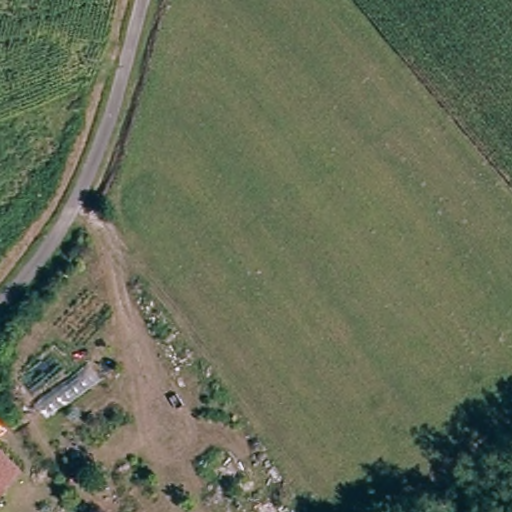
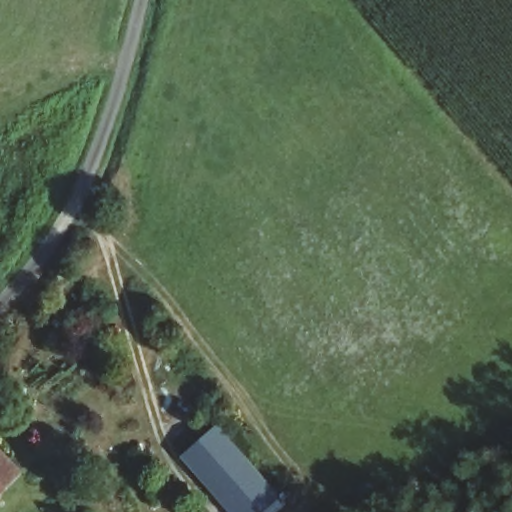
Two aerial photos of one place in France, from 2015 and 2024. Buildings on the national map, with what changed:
new [(282,495),(263,512),(232,512),(182,453),(220,423),(282,495)]
unchanged [(18,477),(0,496),(0,460),(18,477)]

